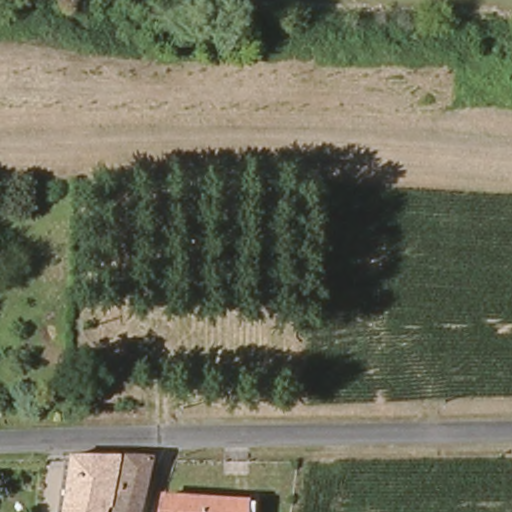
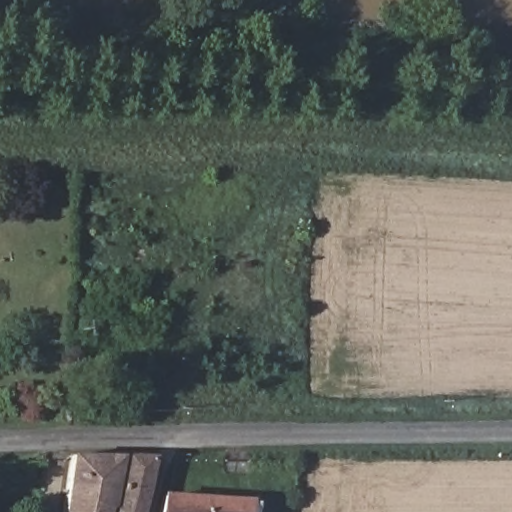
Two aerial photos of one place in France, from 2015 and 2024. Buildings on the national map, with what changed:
unchanged [(122,462),(116,511),(110,510),(110,512),(68,512),(76,461),(122,462)]
unchanged [(157,463),(147,512),(123,512),(129,462),(157,463)]
unchanged [(260,502),(259,512),(165,512),(167,497),(260,502)]

